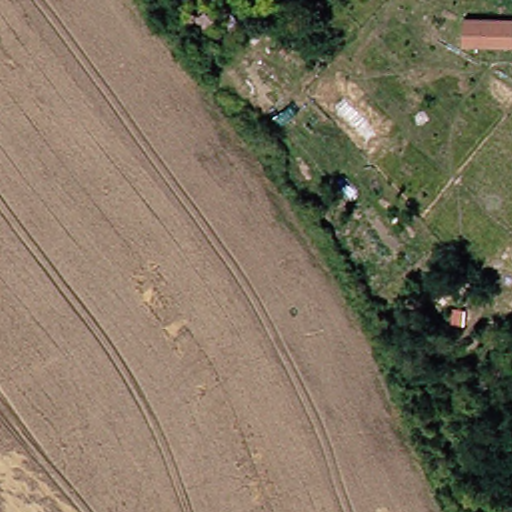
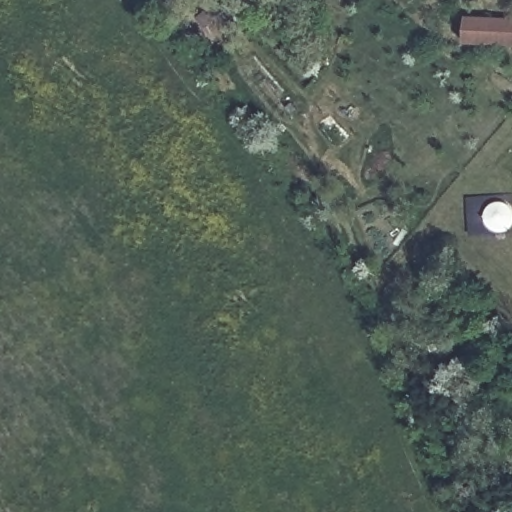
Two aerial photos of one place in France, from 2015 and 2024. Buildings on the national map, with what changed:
unchanged [(512,15),(512,45),(464,44),(466,14),(512,15)]

